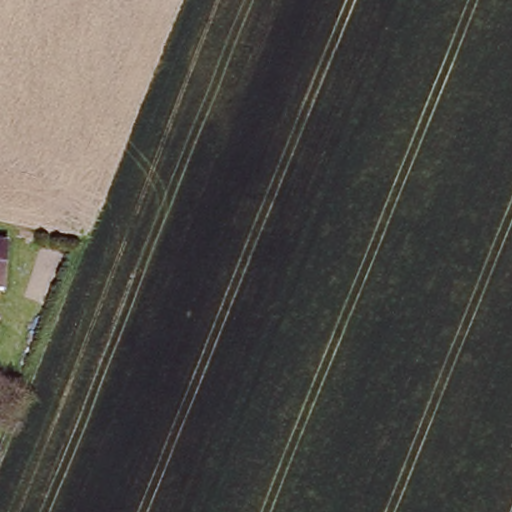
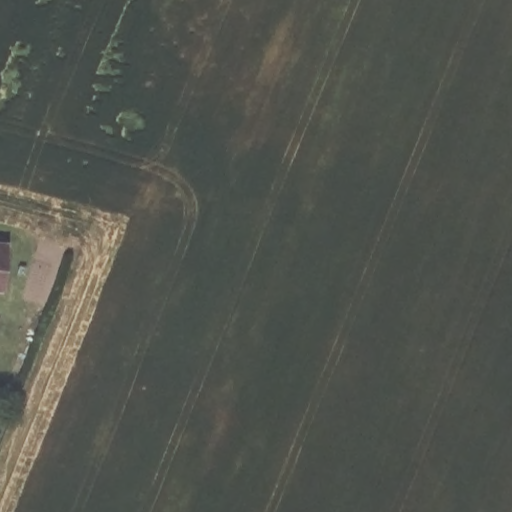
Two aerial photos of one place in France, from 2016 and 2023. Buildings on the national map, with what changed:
unchanged [(5,287),(0,288),(0,242),(9,243),(5,287)]

